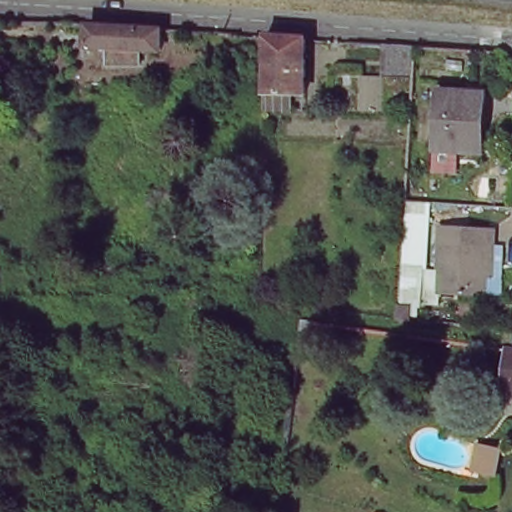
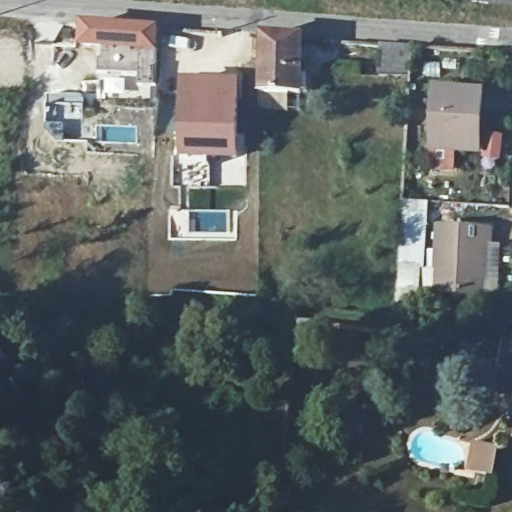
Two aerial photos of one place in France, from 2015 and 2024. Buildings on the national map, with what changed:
unchanged [(161,28),(161,49),(145,48),(145,52),(140,52),(139,63),(108,61),(108,47),(87,46),(86,24),(126,26),(161,28)]
unchanged [(259,109),(259,93),(260,60),(261,35),(301,38),(300,94),(288,93),(288,110),(259,109)]
unchanged [(408,45),(407,76),(380,75),(382,43),(408,45)]
new [(181,79),(241,81),(239,158),(179,159),(181,79)]
unchanged [(488,97),(486,127),(480,126),(478,156),(437,154),(440,95),(488,97)]
unchanged [(502,294),(486,293),(443,291),(442,304),(421,303),(423,271),(441,272),(444,228),(496,231),(494,248),(504,248),(502,294)]
unchanged [(394,319),(395,311),(395,307),(405,309),(404,320),(394,319)]
unchanged [(306,356),(294,355),(299,320),(311,322),(306,356)]
unchanged [(502,389),(507,349),(512,350),(512,390),(502,389)]
unchanged [(486,451),(503,455),(497,479),(481,475),(486,451)]

